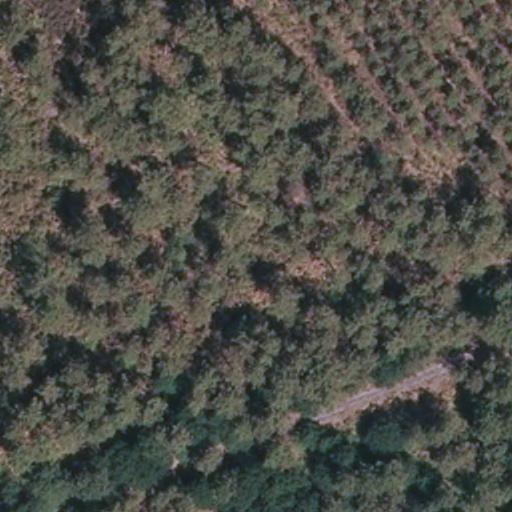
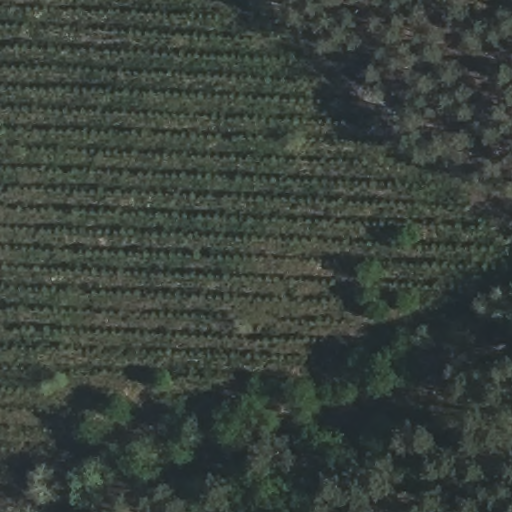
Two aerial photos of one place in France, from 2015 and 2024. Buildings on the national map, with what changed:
[]

